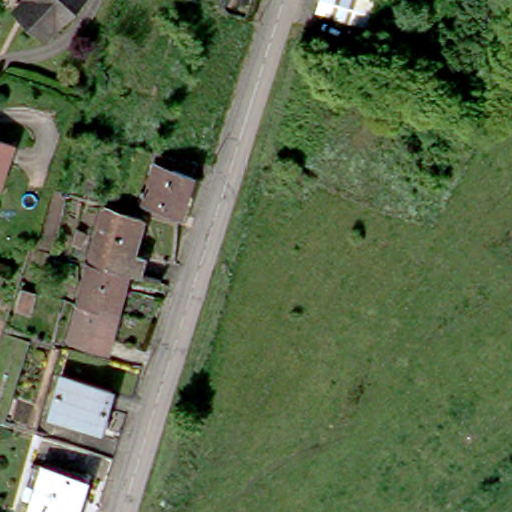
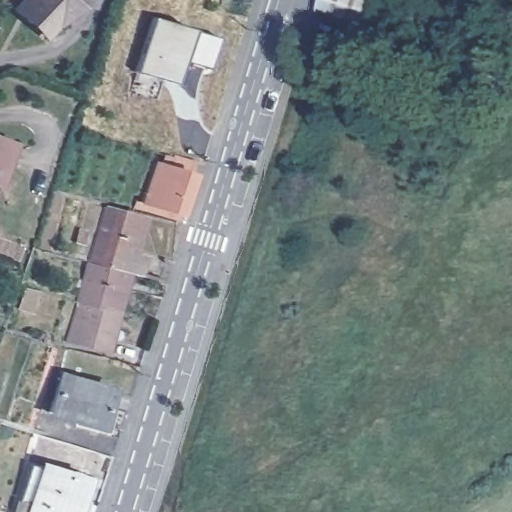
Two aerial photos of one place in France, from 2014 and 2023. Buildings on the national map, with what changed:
unchanged [(76,0),(40,36),(23,20),(11,8),(19,0),(76,0)]
unchanged [(310,0),(356,0),(358,1),(351,24),(308,8),(310,0)]
new [(158,80),(135,73),(151,18),(218,38),(209,69),(181,60),(178,69),(173,85),(158,80)]
unchanged [(0,175),(0,138),(12,143),(0,175)]
unchanged [(136,210),(152,165),(149,165),(155,156),(175,161),(199,167),(178,225),(136,210)]
unchanged [(128,272),(99,264),(89,262),(103,207),(141,218),(138,235),(133,255),(143,258),(139,275),(128,272)]
unchanged [(85,230),(83,244),(73,242),(76,228),(85,230)]
unchanged [(95,304),(78,299),(86,268),(98,271),(99,264),(128,272),(118,310),(95,304)]
unchanged [(35,290),(31,309),(17,304),(23,286),(35,290)]
unchanged [(107,352),(66,341),(78,299),(95,304),(118,310),(107,352)]
unchanged [(55,365),(106,380),(95,417),(45,402),(55,365)]
unchanged [(11,509),(27,452),(79,469),(66,512),(20,512),(11,509)]
unchanged [(11,509),(20,512),(10,512),(11,509)]

